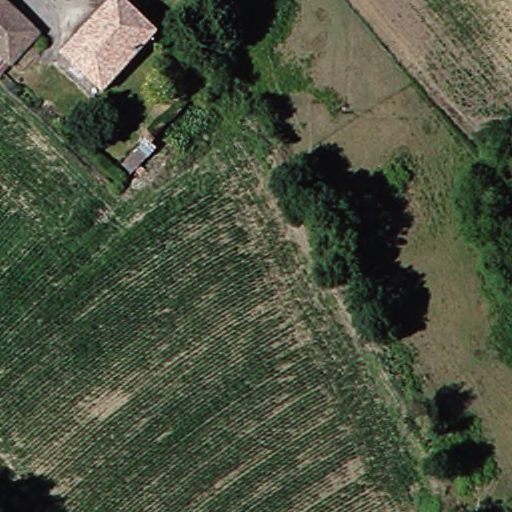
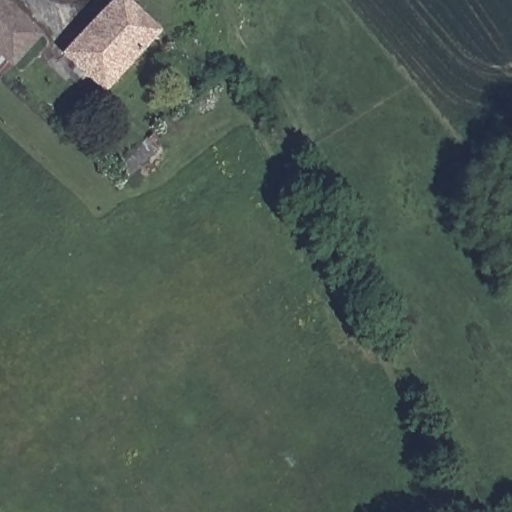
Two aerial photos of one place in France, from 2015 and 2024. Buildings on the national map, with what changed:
unchanged [(22,64),(0,45),(0,0),(15,0),(51,31),(22,64)]
unchanged [(168,35),(114,96),(76,61),(130,2),(168,35)]

